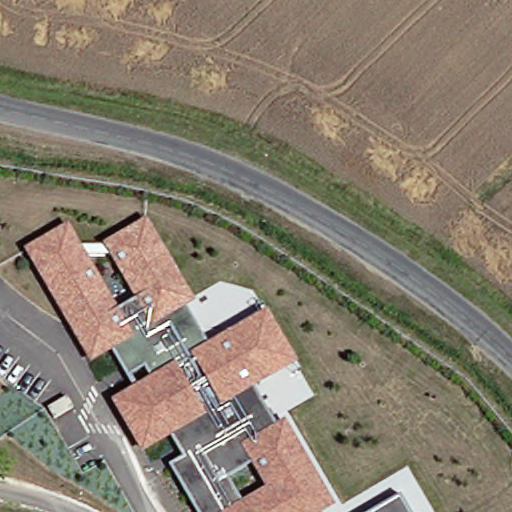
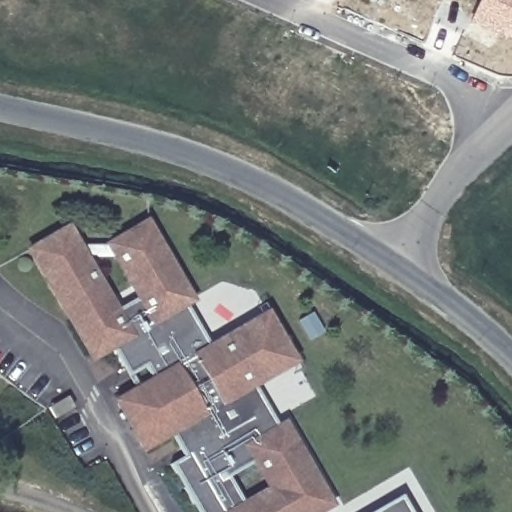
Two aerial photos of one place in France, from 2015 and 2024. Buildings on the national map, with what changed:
new [(477,0),(512,0),(512,43),(467,23),(477,0)]
unchanged [(337,505),(326,512),(200,512),(173,465),(187,457),(175,436),(145,453),(113,400),(135,388),(114,351),(92,363),(25,249),(70,223),(120,309),(136,299),(104,244),(150,218),(197,301),(187,308),(208,344),(270,310),(300,362),(255,388),(275,425),(287,419),(337,505)]
unchanged [(411,512),(374,512),(402,496),(411,512)]

